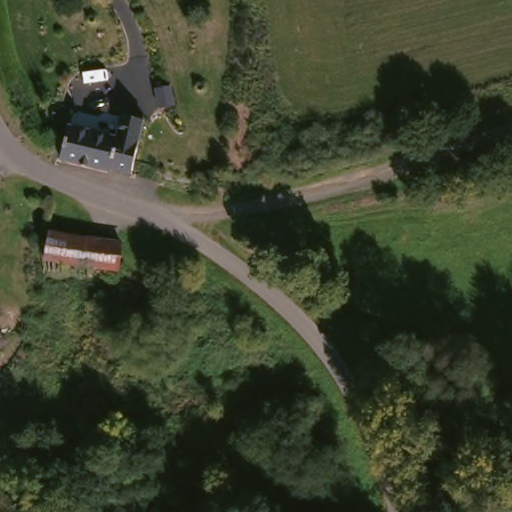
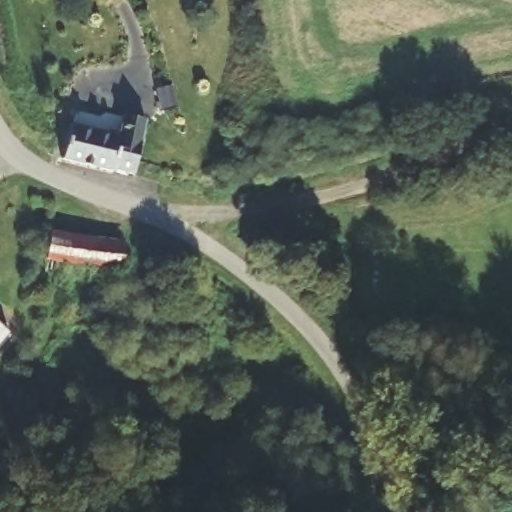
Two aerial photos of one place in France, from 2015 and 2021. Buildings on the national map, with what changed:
unchanged [(127,110),(147,114),(143,137),(135,184),(84,173),(66,169),(71,134),(73,124),(93,127),(122,132),(127,110)]
unchanged [(120,266),(84,261),(46,255),(52,229),(88,234),(124,240),(120,266)]
unchanged [(9,339),(0,348),(0,331),(9,339)]

